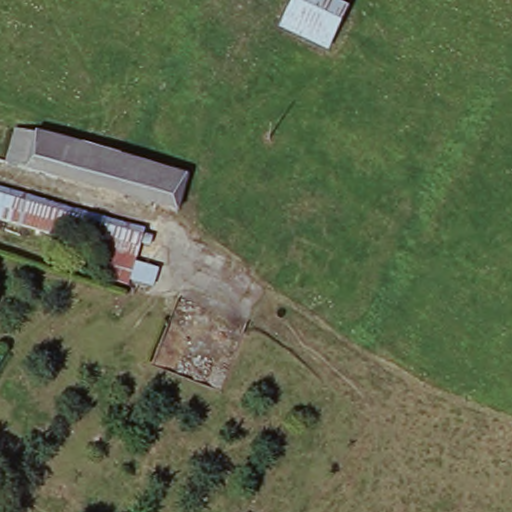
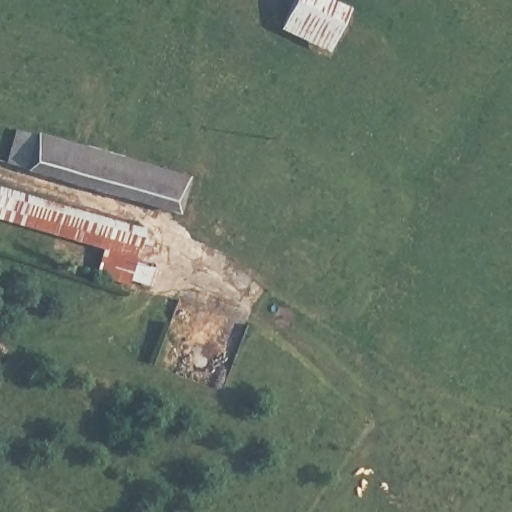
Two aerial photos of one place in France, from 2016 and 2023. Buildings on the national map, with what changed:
unchanged [(350,11),(336,44),(287,22),(295,0),(325,0),(350,11)]
unchanged [(191,177),(181,219),(13,164),(24,131),(191,177)]
unchanged [(160,270),(149,293),(94,277),(101,251),(0,222),(0,191),(150,232),(142,262),(160,270)]

